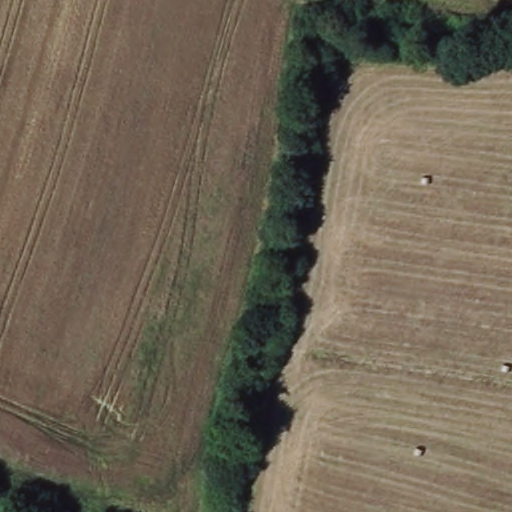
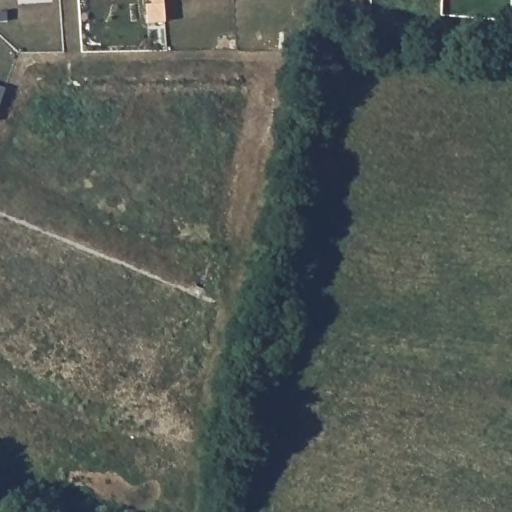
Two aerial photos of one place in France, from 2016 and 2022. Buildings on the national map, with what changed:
new [(147,23),(146,4),(150,3),(150,0),(164,0),(165,20),(147,23)]

